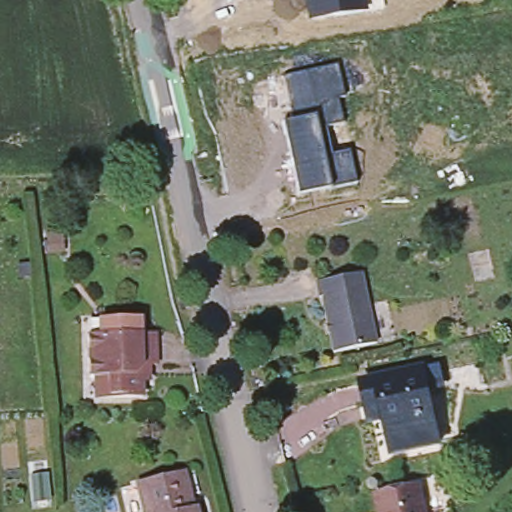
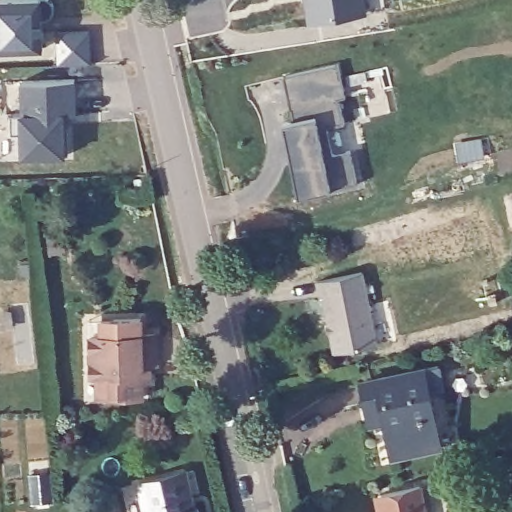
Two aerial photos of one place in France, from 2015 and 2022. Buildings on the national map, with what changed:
new [(53,4),(54,7),(54,11),(53,14),(50,16),(47,19),(43,19),(43,49),(0,50),(0,0),(50,0),(51,1),(53,4)]
unchanged [(365,0),(367,11),(308,20),(305,0),(365,0)]
new [(90,30),(91,63),(58,64),(56,31),(90,30)]
unchanged [(283,121),(293,119),(284,74),(338,62),(346,96),(338,98),(344,124),(327,126),(333,153),(351,149),(356,182),(329,188),(299,194),(283,121)]
new [(23,115),(21,82),(74,80),(75,114),(63,114),(63,128),(68,128),(68,155),(23,156),(22,134),(11,134),(11,115),(23,115)]
unchanged [(378,344),(336,354),(324,298),(321,299),(318,283),(362,273),(378,344)]
unchanged [(88,315),(100,315),(113,315),(137,315),(137,331),(153,331),(154,362),(146,362),(146,377),(140,377),(140,393),(102,394),(101,372),(93,373),(91,373),(89,346),(89,333),(88,315)]
unchanged [(389,449),(378,398),(364,402),(359,378),(414,366),(434,362),(438,379),(429,380),(431,385),(424,387),(436,439),(389,449)]
unchanged [(180,471),(189,504),(191,512),(142,512),(133,481),(174,472),(180,471)]
unchanged [(428,512),(381,512),(378,496),(383,495),(422,487),(428,512)]

